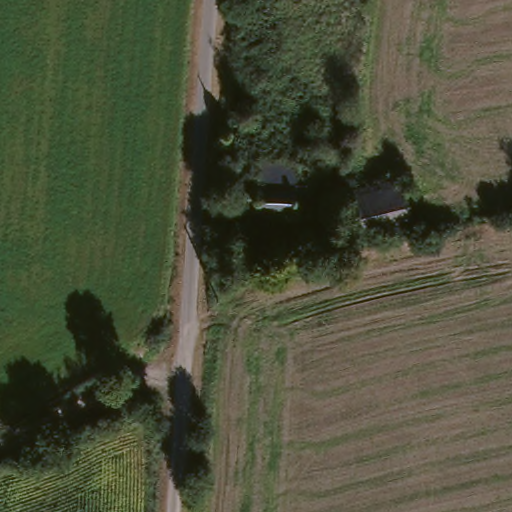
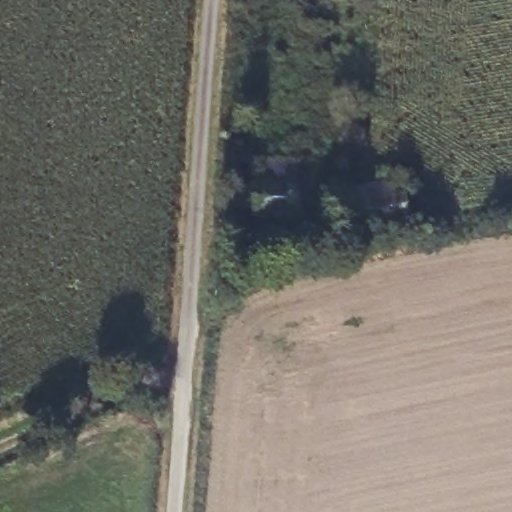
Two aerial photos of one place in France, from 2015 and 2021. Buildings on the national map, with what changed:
unchanged [(302,224),(247,218),(247,211),(226,209),(228,185),(250,188),(254,162),(309,169),(302,224)]
unchanged [(360,249),(349,198),(394,188),(406,238),(360,249)]

